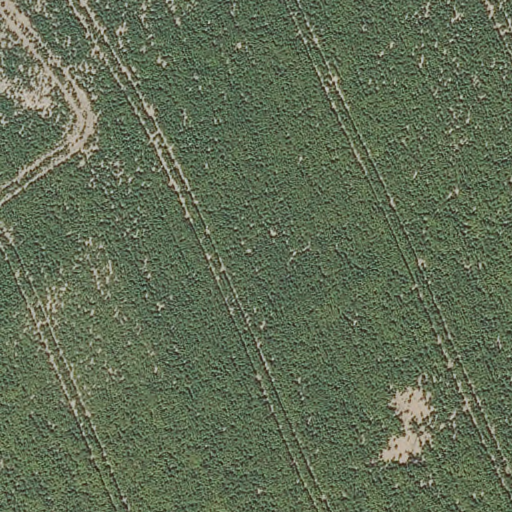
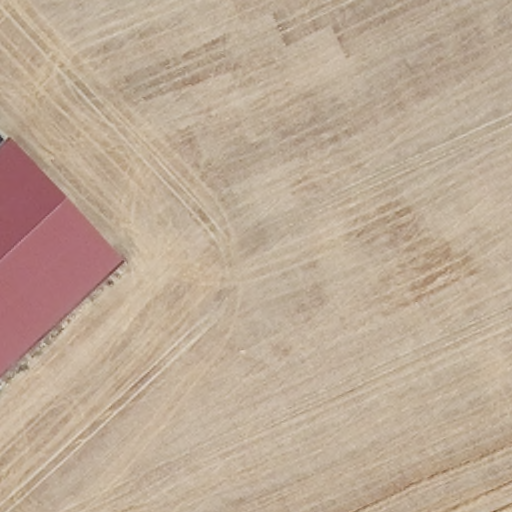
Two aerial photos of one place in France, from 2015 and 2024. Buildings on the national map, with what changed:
new [(124,266),(0,382),(0,150),(7,143),(124,266)]

